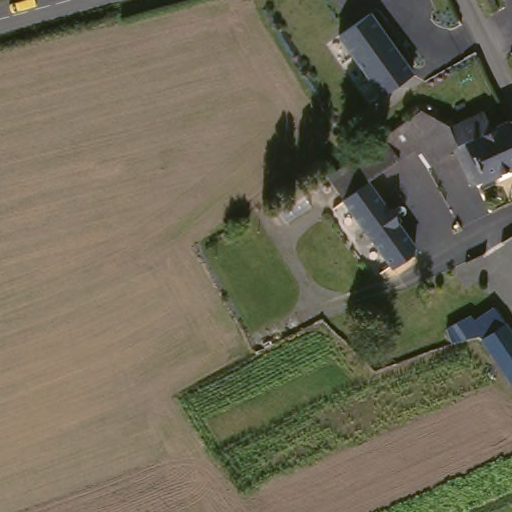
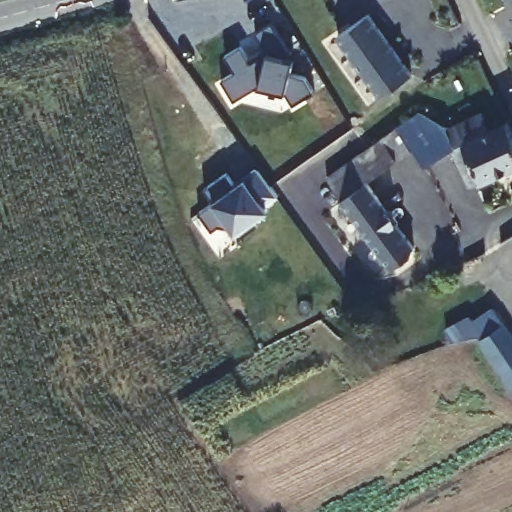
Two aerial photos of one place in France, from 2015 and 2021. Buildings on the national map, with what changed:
unchanged [(411,76),(380,96),(337,36),(368,16),(411,76)]
new [(232,76),(222,60),(239,50),(248,66),(265,56),(253,37),(270,26),(285,53),(283,61),(291,63),(287,77),(302,81),(312,98),(290,111),(283,98),(255,91),(230,106),(218,85),(232,76)]
unchanged [(508,123),(512,131),(512,168),(475,184),(456,146),(417,166),(410,156),(370,184),(417,249),(390,270),(327,177),(355,160),(352,154),(421,111),(447,126),(482,112),(490,126),(508,123)]
new [(211,205),(202,193),(225,176),(235,190),(256,175),(269,191),(276,201),(262,210),(265,215),(252,224),(255,230),(237,243),(230,232),(222,239),(216,230),(209,235),(196,216),(211,205)]
unchanged [(496,314),(512,337),(512,382),(492,354),(486,345),(484,346),(480,341),(458,349),(456,346),(449,331),(467,322),(473,318),(477,324),(496,314)]

